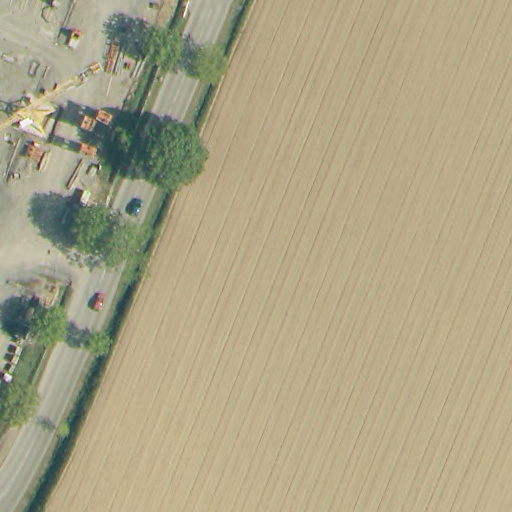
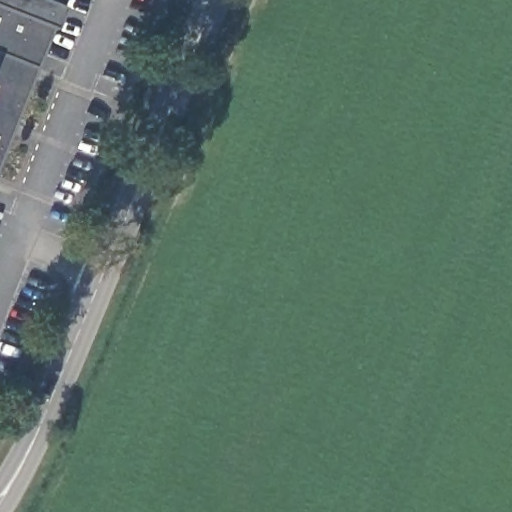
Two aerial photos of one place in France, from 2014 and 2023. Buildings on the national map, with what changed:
new [(49,26),(0,154),(0,0),(60,0),(49,26)]

